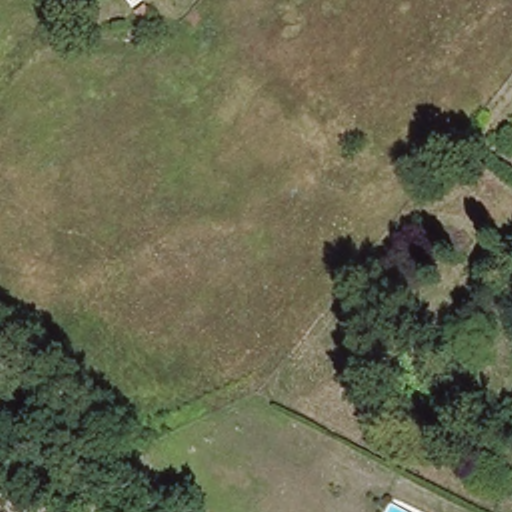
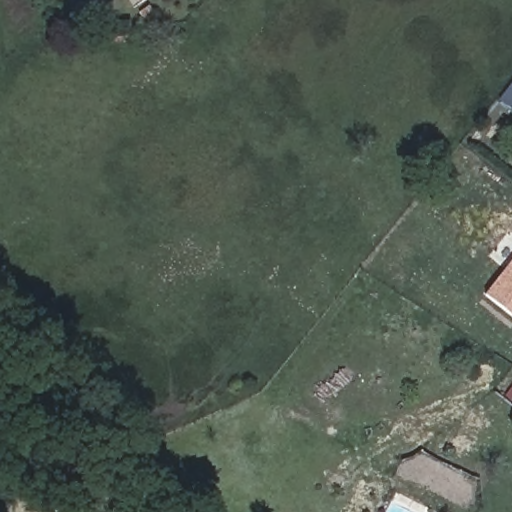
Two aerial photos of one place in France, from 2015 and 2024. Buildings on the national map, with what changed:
new [(512,313),(486,292),(512,259),(512,313)]

